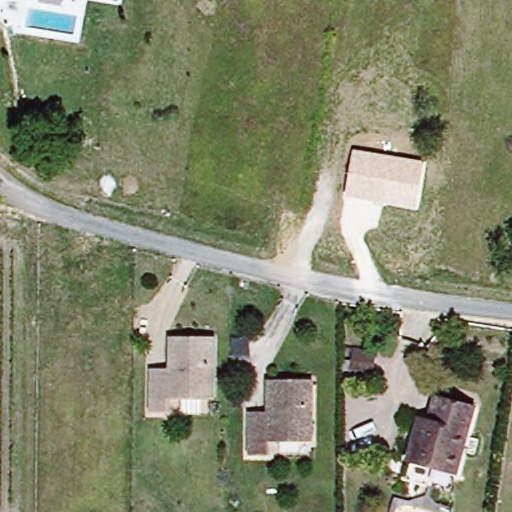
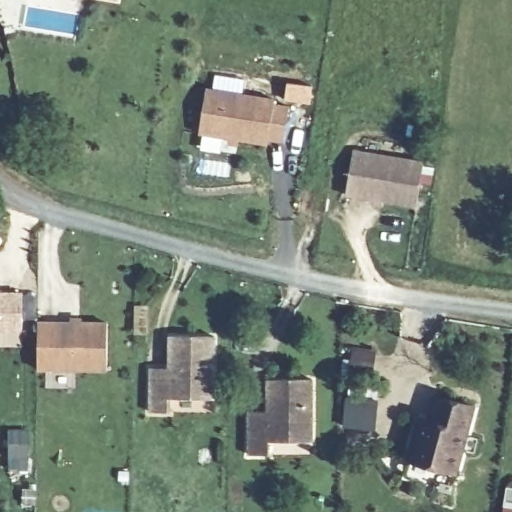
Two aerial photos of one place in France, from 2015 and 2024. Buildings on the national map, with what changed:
new [(208,93),(276,105),(275,110),(291,112),(285,146),(269,144),(269,149),(201,137),(208,93)]
unchanged [(351,150),(423,163),(415,208),(344,196),(351,150)]
new [(22,292),(22,330),(0,330),(0,292),(22,292)]
new [(37,322),(107,323),(106,369),(36,368),(37,322)]
unchanged [(150,368),(168,367),(170,336),(216,336),(215,396),(172,396),(172,413),(148,411),(150,368)]
unchanged [(374,369),(371,386),(347,382),(350,365),(374,369)]
unchanged [(312,385),(311,446),(267,447),(268,460),(248,460),(248,417),(266,417),(267,385),(312,385)]
unchanged [(473,407),(455,473),(407,460),(418,419),(427,421),(434,397),(473,407)]

